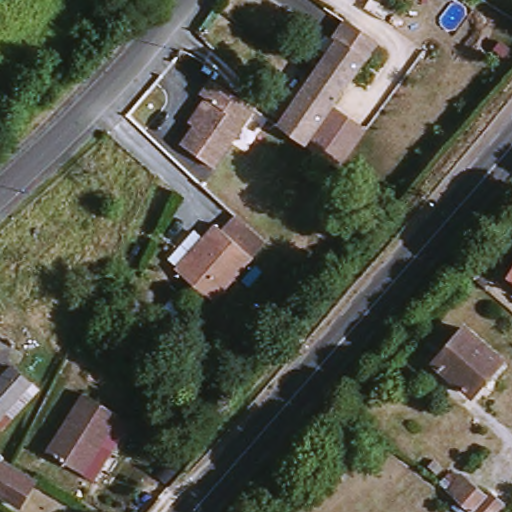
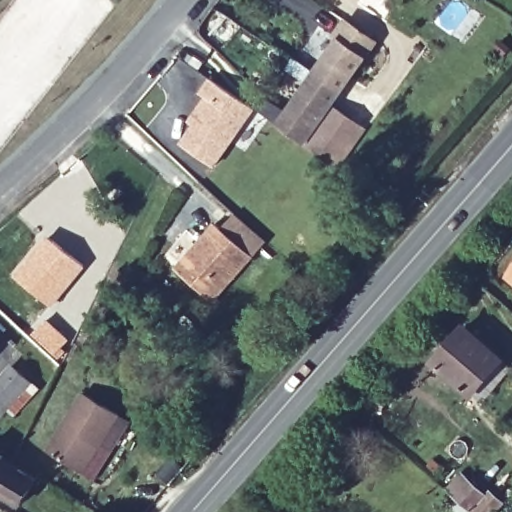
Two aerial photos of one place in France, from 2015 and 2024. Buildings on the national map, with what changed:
unchanged [(400,0),(410,0),(406,7),(399,1),(400,0)]
unchanged [(364,61),(341,94),(304,146),(279,129),(315,77),(338,45),(335,41),(346,25),(378,45),(367,62),(364,61)]
unchanged [(233,141),(214,169),(182,147),(196,127),(193,124),(192,124),(199,114),(208,101),(202,97),(212,82),(221,89),(254,112),(233,141)]
unchanged [(216,303),(179,270),(218,225),(224,230),(239,215),(271,242),(216,303)]
new [(46,236),(86,267),(52,307),(14,275),(46,236)]
new [(46,320),(69,341),(62,348),(68,353),(60,361),(32,336),(46,320)]
unchanged [(504,362),(475,395),(440,362),(469,329),(504,362)]
unchanged [(0,420),(0,391),(19,372),(37,390),(13,414),(4,424),(0,420)]
unchanged [(129,414),(93,472),(57,448),(93,391),(129,414)]
unchanged [(27,502),(0,485),(0,447),(8,451),(6,453),(43,475),(27,502)]
unchanged [(451,483),(462,471),(468,475),(470,474),(475,478),(477,477),(486,484),(486,486),(496,495),(498,492),(510,502),(501,512),(483,512),(462,493),(451,483)]

